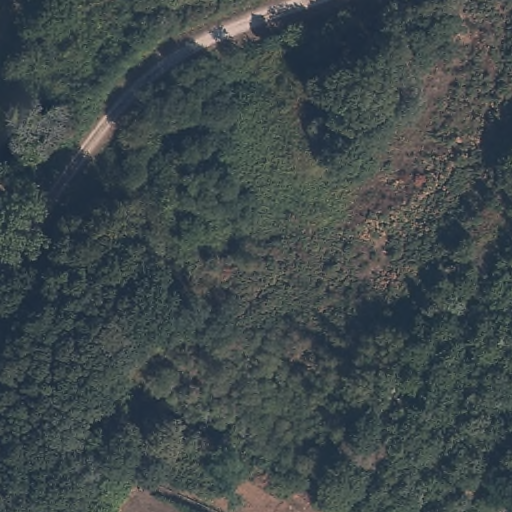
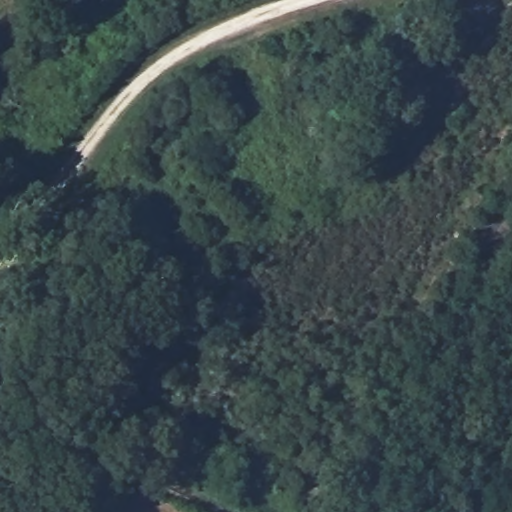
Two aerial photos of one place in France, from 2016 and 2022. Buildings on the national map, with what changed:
[]

